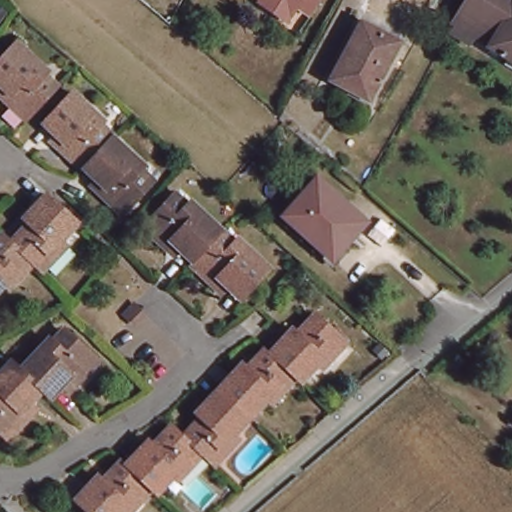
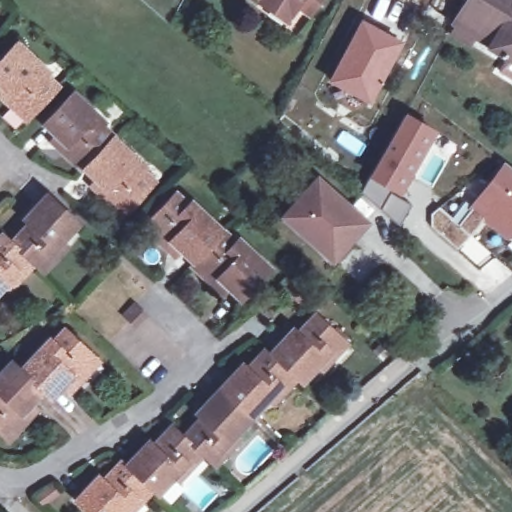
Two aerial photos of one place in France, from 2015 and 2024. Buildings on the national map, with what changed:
unchanged [(270,0),(269,2),(264,0),(270,0)]
unchanged [(272,0),(298,0),(290,12),(272,0)]
unchanged [(305,0),(315,0),(312,5),(305,0)]
unchanged [(455,22),(466,0),(512,0),(512,57),(475,35),(469,45),(448,34),(455,22)]
unchanged [(369,99),(330,78),(360,20),(400,40),(369,99)]
unchanged [(0,76),(0,66),(22,42),(52,71),(47,77),(60,89),(33,118),(12,99),(2,89),(7,83),(0,76)]
unchanged [(62,133),(50,122),(78,92),(110,121),(105,127),(117,139),(90,167),(89,170),(67,148),(56,139),(62,133)]
new [(401,195),(394,190),(392,192),(412,206),(400,224),(362,191),(369,175),(406,111),(438,130),(401,195)]
unchanged [(102,179),(90,167),(117,139),(119,137),(119,136),(150,166),(145,171),(157,182),(128,215),(107,195),(97,184),(102,179)]
new [(507,240),(482,219),(457,249),(431,226),(432,212),(440,207),(457,222),(469,207),(505,161),(512,166),(512,233),(507,240)]
unchanged [(323,252),(283,216),(317,179),(365,222),(344,246),(332,260),(323,252)]
unchanged [(25,222),(16,215),(42,187),(79,220),(60,241),(70,250),(42,281),(25,263),(0,290),(0,231),(8,238),(25,222)]
unchanged [(168,242),(145,222),(174,192),(185,204),(192,197),(223,227),(222,227),(221,229),(210,241),(199,253),(195,257),(182,245),(177,251),(168,242)]
unchanged [(215,279),(194,259),(195,257),(199,253),(210,241),(221,229),(233,242),(239,236),(270,264),(242,293),(230,282),(224,287),(215,279)]
unchanged [(137,326),(125,314),(135,303),(147,315),(137,326)]
unchanged [(312,357),(295,376),(290,371),(285,366),(263,346),(286,321),(295,329),(312,309),(340,336),(329,349),(317,362),(312,357)]
unchanged [(65,391),(55,402),(52,399),(45,393),(29,377),(25,375),(52,345),(59,350),(70,337),(100,366),(80,387),(70,397),(65,391)]
unchanged [(260,392),(244,410),(233,400),(212,382),(235,356),(242,362),(260,343),(263,346),(285,366),(290,371),(277,383),(266,396),(260,392)]
unchanged [(9,445),(0,436),(0,382),(15,366),(17,367),(21,371),(25,375),(29,377),(45,393),(32,407),(37,413),(28,422),(9,445)]
unchanged [(220,447),(209,459),(203,454),(198,450),(182,435),(180,432),(197,413),(190,406),(212,382),(233,400),(244,410),(227,427),(232,433),(220,447)]
unchanged [(169,471),(152,488),(148,485),(121,460),(144,435),(150,441),(168,422),(180,432),(182,435),(198,450),(185,462),(174,476),(169,471)]
unchanged [(119,504),(111,512),(90,512),(72,495),(94,471),(101,477),(119,458),(121,460),(148,485),(136,497),(124,510),(119,504)]

